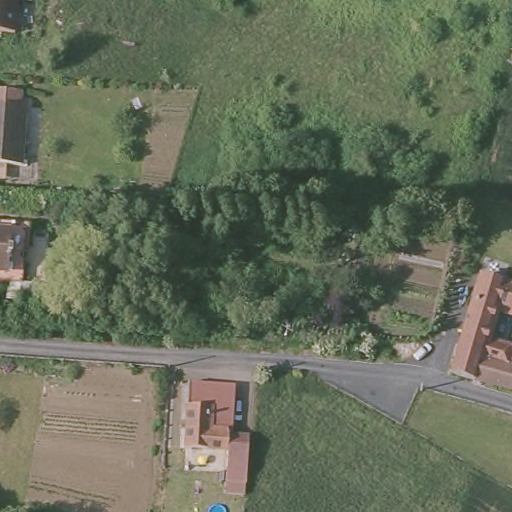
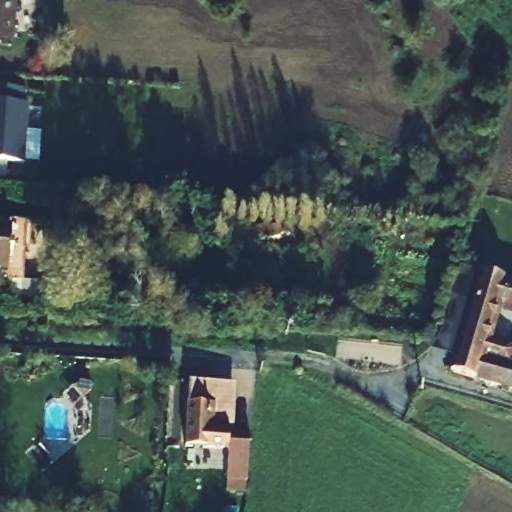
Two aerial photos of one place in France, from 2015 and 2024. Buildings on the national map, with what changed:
unchanged [(0,25),(0,0),(23,0),(22,10),(21,25),(0,25)]
unchanged [(0,159),(0,85),(28,86),(28,145),(28,160),(0,159)]
unchanged [(23,212),(19,277),(0,276),(0,211),(23,212)]
unchanged [(499,303),(488,337),(512,345),(512,349),(510,357),(512,358),(512,383),(454,367),(484,271),(506,278),(499,303)]
unchanged [(512,280),(512,314),(497,310),(506,278),(512,280)]
unchanged [(191,381),(230,383),(228,428),(244,429),(243,448),(184,445),(191,381)]
unchanged [(241,424),(245,387),(256,390),(251,426),(241,424)]

